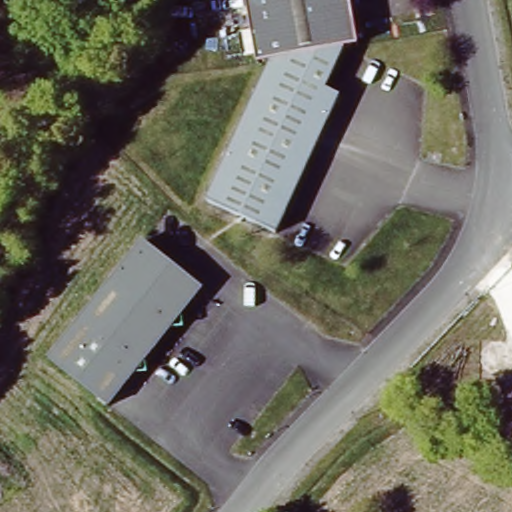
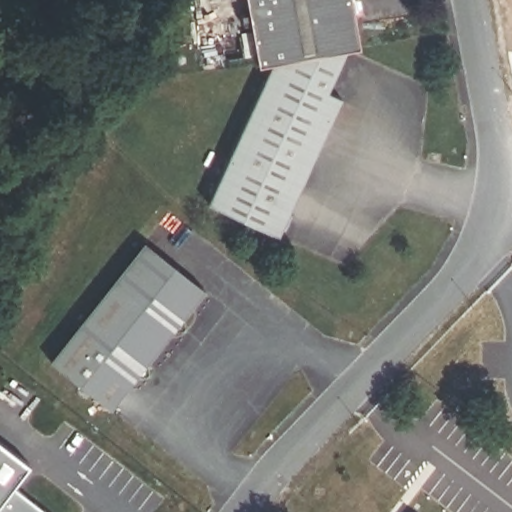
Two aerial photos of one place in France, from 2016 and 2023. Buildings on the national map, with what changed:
unchanged [(345,57),(330,86),(324,98),(340,106),(277,241),(206,208),(254,99),(265,71),(260,71),(252,65),(240,0),(346,0),(352,30),(348,31),(352,51),(349,56),(345,57)]
unchanged [(148,244),(208,293),(110,413),(50,365),(148,244)]
new [(30,464),(13,485),(47,512),(0,512),(0,441),(30,464)]

